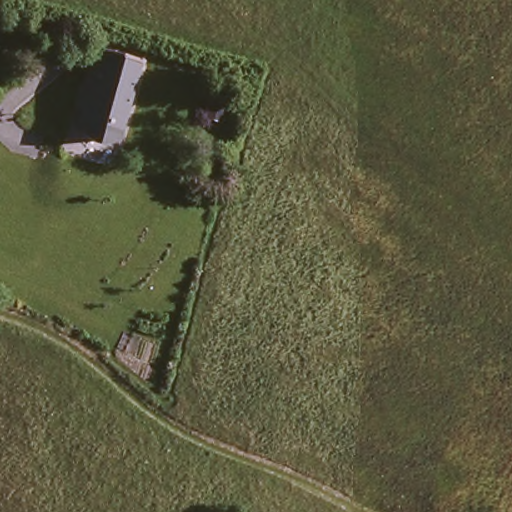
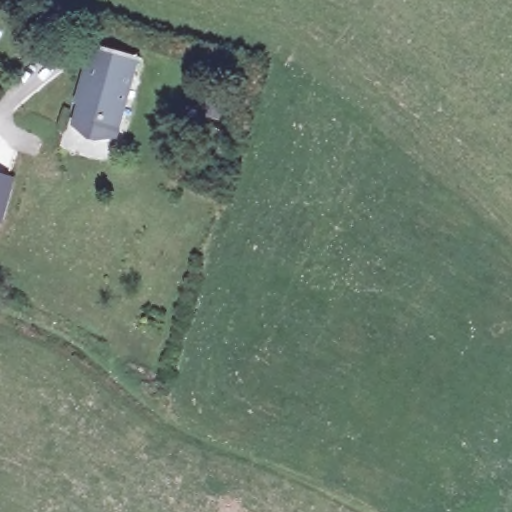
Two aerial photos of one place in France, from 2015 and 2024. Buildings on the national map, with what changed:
unchanged [(141,48),(122,117),(120,126),(100,131),(96,129),(83,115),(85,106),(103,37),(141,48)]
new [(6,225),(0,223),(0,174),(17,179),(6,225)]

